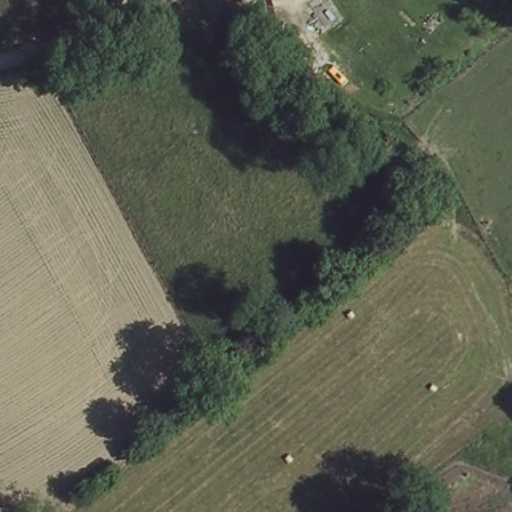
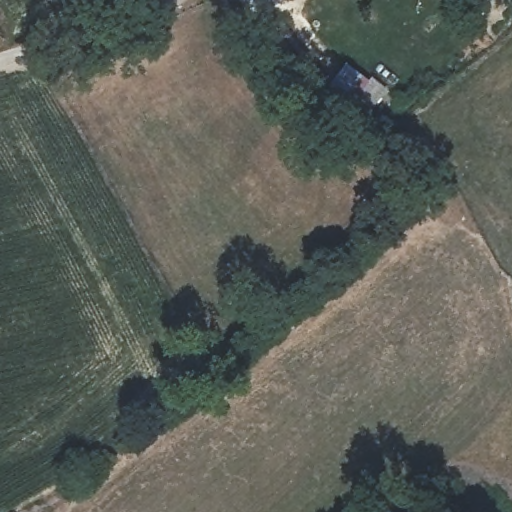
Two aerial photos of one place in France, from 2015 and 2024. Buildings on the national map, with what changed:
unchanged [(254,0),(262,0),(257,4),(254,0)]

